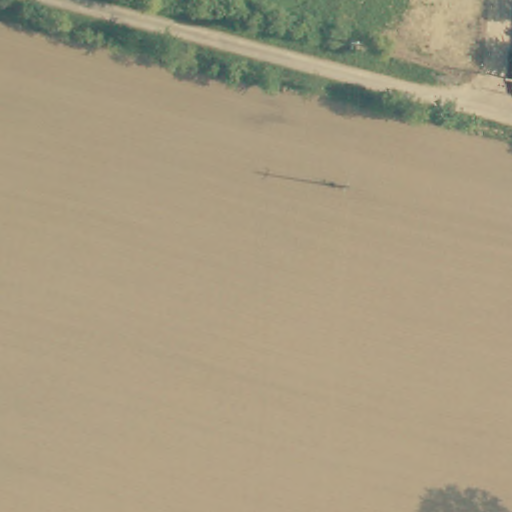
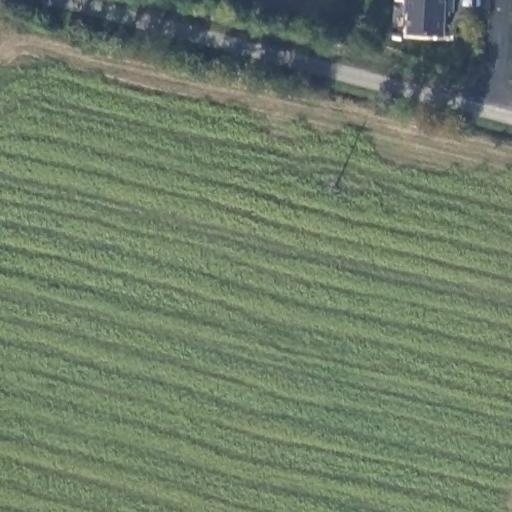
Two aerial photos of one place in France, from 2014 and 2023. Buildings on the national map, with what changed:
new [(452,11),(452,16),(447,16),(446,36),(407,34),(409,11),(406,11),(406,0),(455,0),(455,11),(452,11)]

